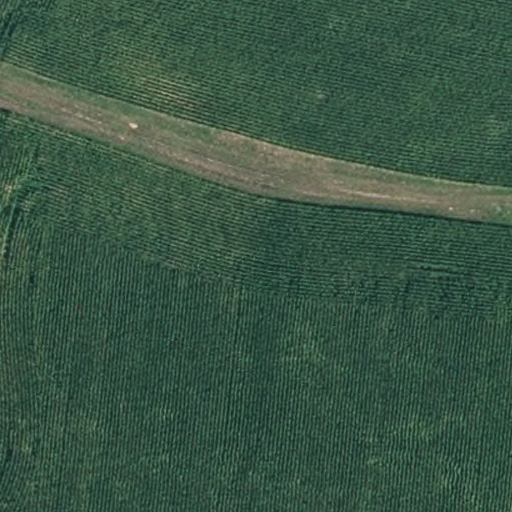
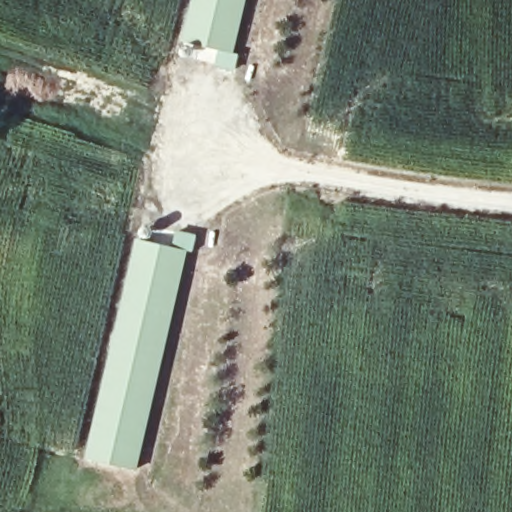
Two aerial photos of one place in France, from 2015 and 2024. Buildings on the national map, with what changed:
new [(246,0),(234,52),(241,54),(237,69),(217,64),(221,49),(186,41),(196,0),(246,0)]
new [(140,239),(175,247),(177,232),(198,237),(195,252),(187,250),(136,471),(90,460),(140,239)]

